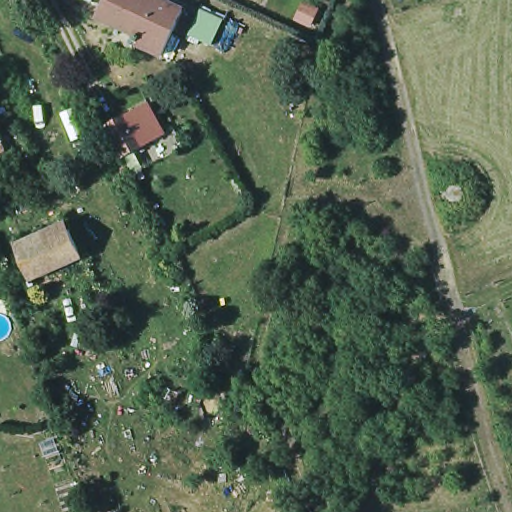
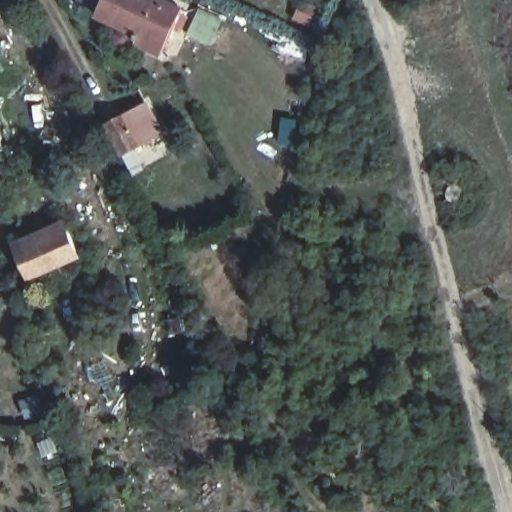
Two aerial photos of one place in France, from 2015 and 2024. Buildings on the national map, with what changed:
unchanged [(133,37),(137,29),(99,10),(103,0),(177,0),(186,5),(163,50),(133,37)]
unchanged [(125,160),(107,127),(149,106),(167,137),(125,160)]
unchanged [(0,150),(0,144),(2,149),(0,150)]
unchanged [(70,229),(82,256),(30,278),(19,251),(70,229)]

